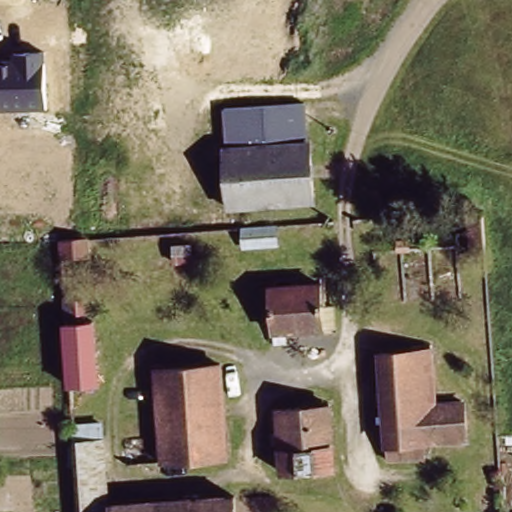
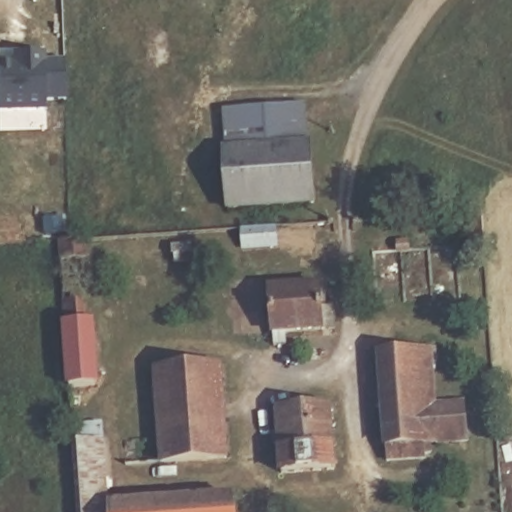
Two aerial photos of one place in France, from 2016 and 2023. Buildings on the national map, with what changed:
unchanged [(47,109),(0,111),(0,60),(12,59),(12,52),(46,52),(47,109)]
unchanged [(219,116),(299,110),(301,149),(222,155),(219,116)]
unchanged [(222,155),(301,149),(304,149),(308,208),(224,214),(219,155),(222,155)]
unchanged [(483,217),(485,249),(472,250),(469,208),(482,207),(483,217)]
unchanged [(273,245),(239,248),(238,229),(271,227),(273,245)]
unchanged [(58,237),(89,235),(90,251),(60,254),(58,237)]
unchanged [(191,244),(193,262),(176,263),(173,246),(191,244)]
unchanged [(408,244),(409,250),(399,251),(398,245),(408,244)]
unchanged [(321,285),(322,308),(333,307),(334,328),(286,332),(286,344),(274,345),(270,288),(321,285)]
unchanged [(63,301),(84,300),(85,321),(93,320),(98,385),(69,387),(63,301)]
unchanged [(427,350),(430,407),(463,405),(464,440),(420,442),(421,458),(383,460),(379,405),(374,406),(373,393),(379,393),(376,353),(427,350)]
unchanged [(221,361),(228,454),(163,458),(156,366),(221,361)]
unchanged [(330,406),(335,469),(283,473),(278,410),(330,406)]
unchanged [(104,416),(111,500),(234,491),(236,512),(79,512),(73,419),(73,418),(104,416)]

